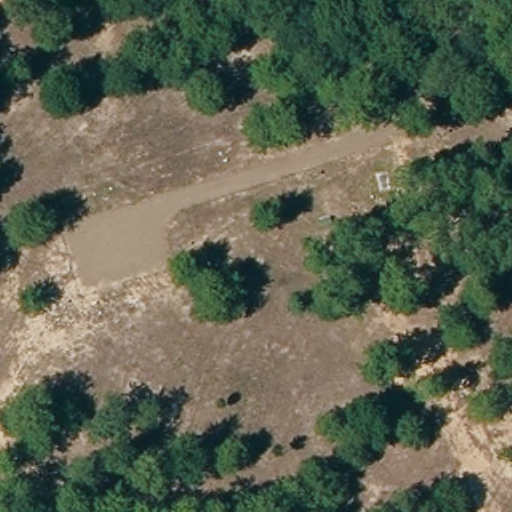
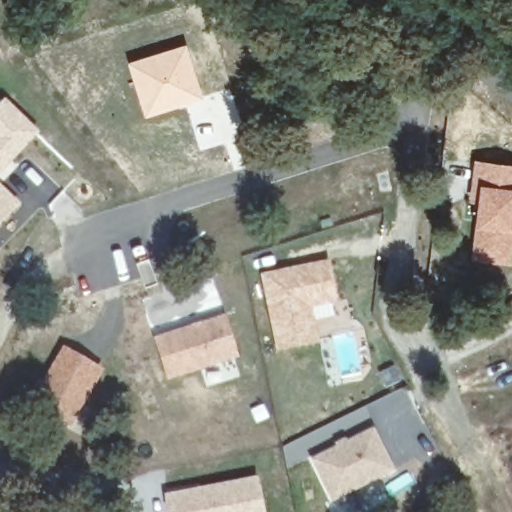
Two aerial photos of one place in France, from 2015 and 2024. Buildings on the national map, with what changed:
new [(187,43),(204,98),(145,118),(127,61),(187,43)]
new [(0,176),(2,179),(0,181),(0,103),(5,98),(40,132),(0,176)]
new [(475,159),(512,163),(512,259),(511,266),(470,260),(476,202),(469,201),(475,159)]
new [(0,182),(21,204),(0,225),(0,182)]
new [(330,259),(337,305),(315,310),(320,344),(275,354),(259,274),(330,259)]
new [(213,277),(222,306),(150,329),(141,298),(213,277)]
new [(224,317),(236,356),(168,378),(155,338),(224,317)]
new [(64,349),(100,370),(81,403),(69,424),(33,403),(64,349)]
new [(395,469),(331,500),(310,458),(335,446),(333,442),(345,437),(346,442),(373,428),(395,469)]
new [(166,496),(256,479),(262,512),(177,512),(169,512),(166,496)]

